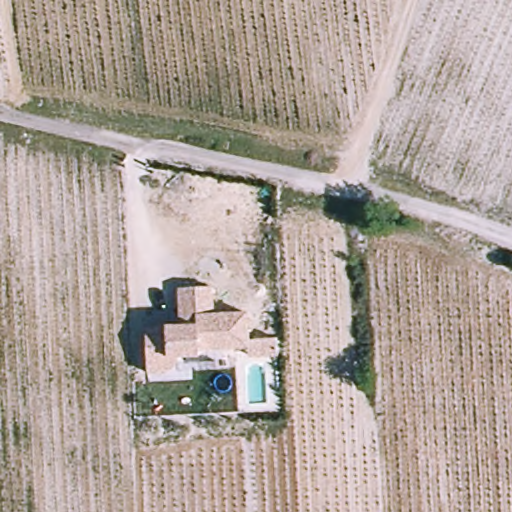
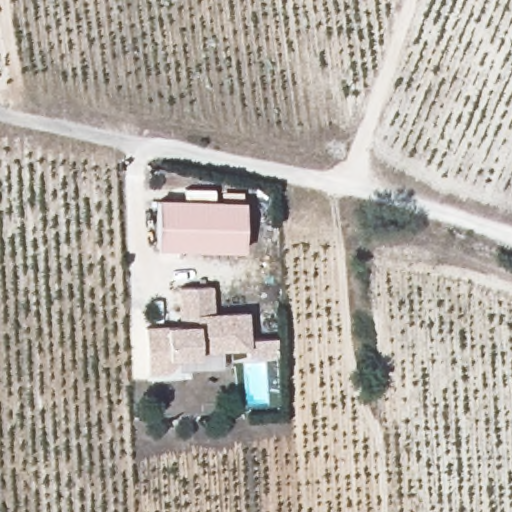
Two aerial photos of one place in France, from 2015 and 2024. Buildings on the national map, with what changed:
new [(157,201),(245,204),(243,254),(156,250),(157,201)]
unchanged [(183,318),(181,289),(214,287),(216,315),(249,313),(252,343),(202,347),(203,356),(181,357),(181,360),(170,370),(151,371),(148,330),(184,327),(183,318)]

